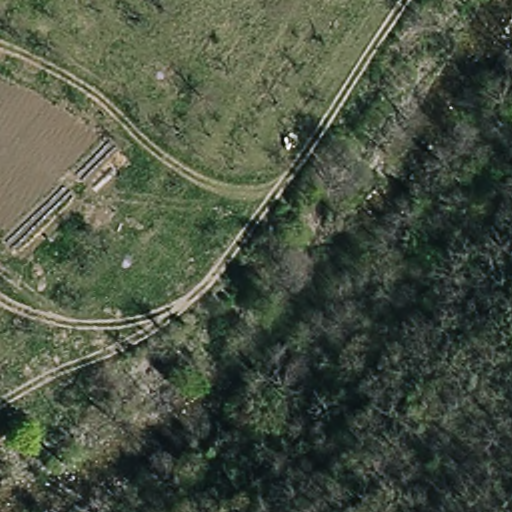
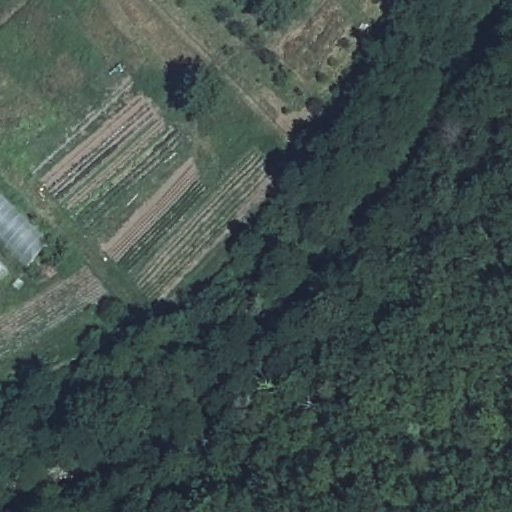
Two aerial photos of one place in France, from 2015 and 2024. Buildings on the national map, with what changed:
new [(28,267),(0,240),(0,194),(51,244),(28,267)]
new [(7,273),(0,278),(0,264),(7,273)]

